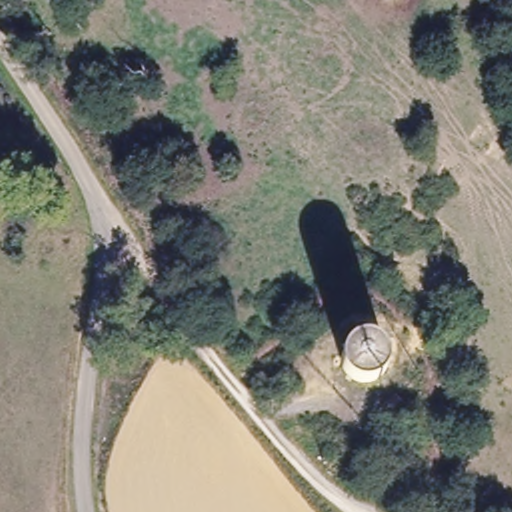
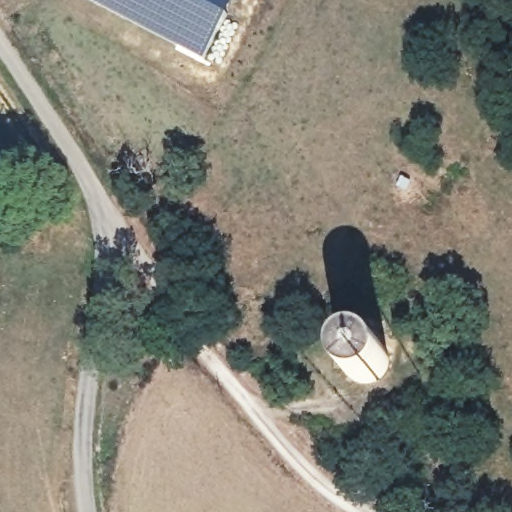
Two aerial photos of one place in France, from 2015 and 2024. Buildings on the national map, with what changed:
new [(205,55),(93,0),(234,0),(205,55)]
new [(372,407),(366,399),(380,387),(388,396),(372,407)]

